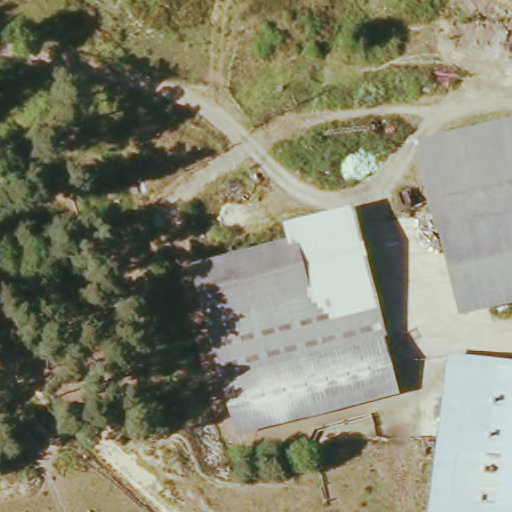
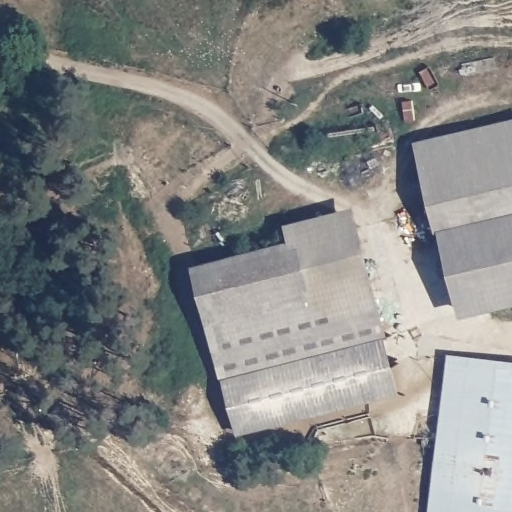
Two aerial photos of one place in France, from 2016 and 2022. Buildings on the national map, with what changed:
unchanged [(423,140),(512,120),(512,218),(446,234),(423,140)]
unchanged [(228,383),(199,270),(301,243),(295,224),(356,209),(390,341),(228,383)]
unchanged [(446,234),(512,218),(512,306),(468,316),(446,234)]
unchanged [(403,395),(242,436),(228,383),(390,341),(403,395)]
unchanged [(512,363),(512,512),(430,512),(450,356),(512,363)]

